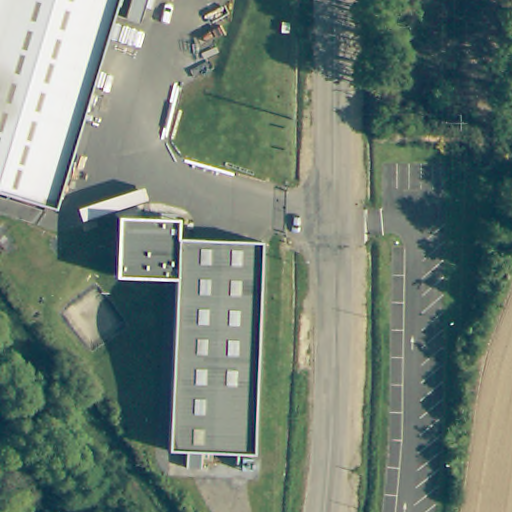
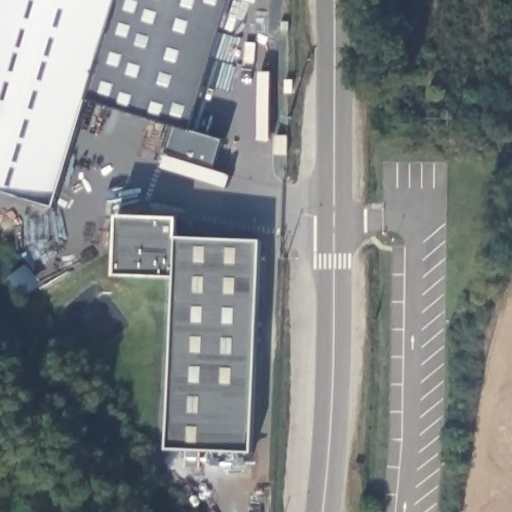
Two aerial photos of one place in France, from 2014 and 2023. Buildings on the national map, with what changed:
unchanged [(111,14),(77,127),(0,95),(0,0),(144,0),(137,22),(111,14)]
new [(225,140),(216,166),(168,153),(176,126),(86,99),(111,14),(137,22),(144,0),(233,0),(192,130),(225,140)]
unchanged [(53,210),(0,194),(0,95),(77,127),(53,210)]
unchanged [(176,218),(176,238),(260,240),(254,453),(169,451),(174,279),(114,277),(115,217),(176,218)]

